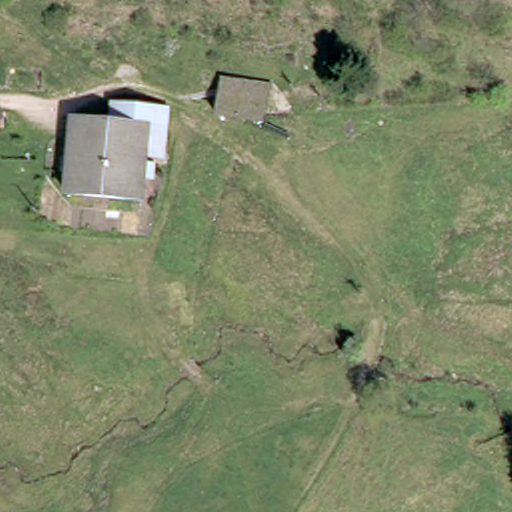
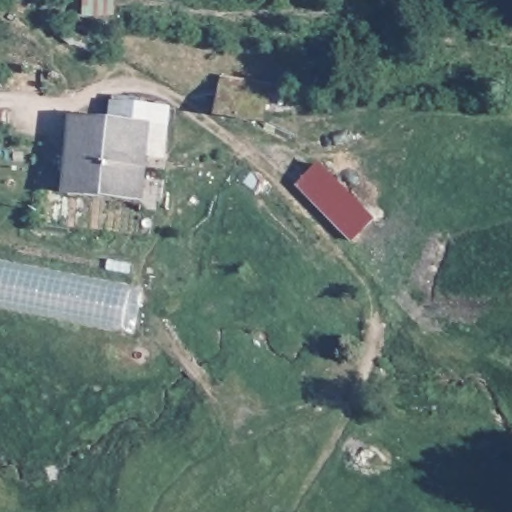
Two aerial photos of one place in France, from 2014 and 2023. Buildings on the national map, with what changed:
unchanged [(219,89),(262,95),(260,115),(260,120),(214,114),(215,105),(217,106),(219,89)]
unchanged [(110,101),(161,105),(157,162),(138,162),(140,127),(107,125),(110,101)]
unchanged [(135,208),(63,204),(70,123),(107,125),(140,127),(138,162),(135,208)]
new [(0,304),(0,260),(130,286),(122,329),(0,304)]

